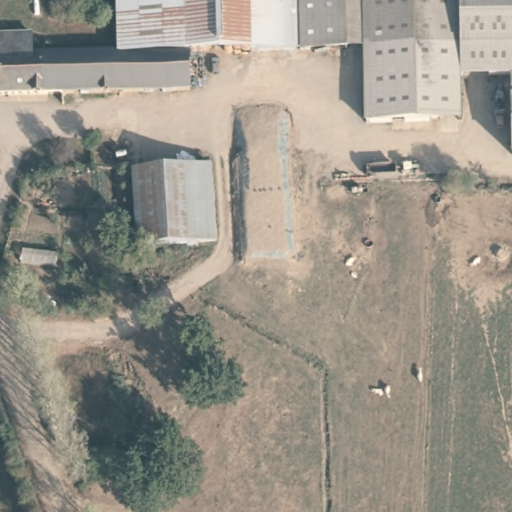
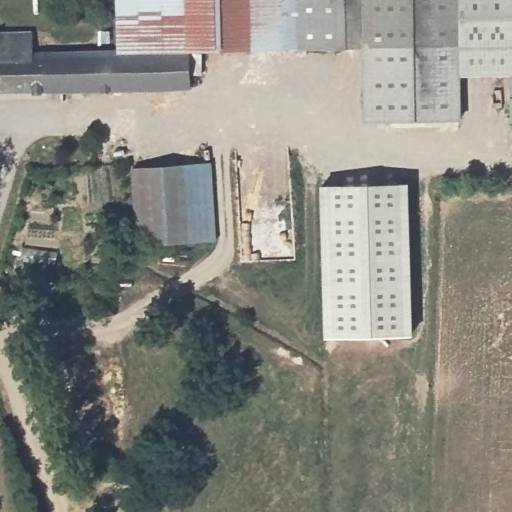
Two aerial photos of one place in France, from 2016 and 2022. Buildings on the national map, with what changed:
unchanged [(348,47),(190,51),(119,51),(118,0),(347,0),(348,47)]
unchanged [(458,76),(459,122),(366,124),(366,0),(458,0),(458,76)]
unchanged [(507,76),(503,76),(458,76),(458,0),(512,0),(512,76),(507,76)]
unchanged [(31,54),(119,51),(190,51),(190,88),(0,92),(0,33),(33,32),(31,54)]
unchanged [(512,76),(512,157),(507,157),(507,76),(512,76)]
unchanged [(133,170),(211,164),(215,240),(165,242),(137,244),(137,237),(133,170)]
new [(413,337),(322,338),(318,186),(407,184),(413,337)]
unchanged [(31,298),(37,289),(47,298),(42,306),(31,298)]

